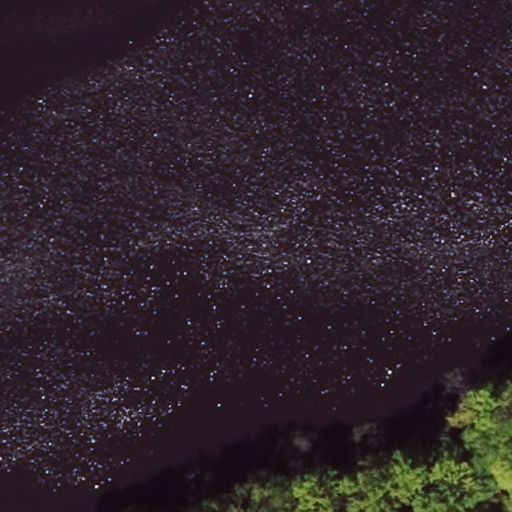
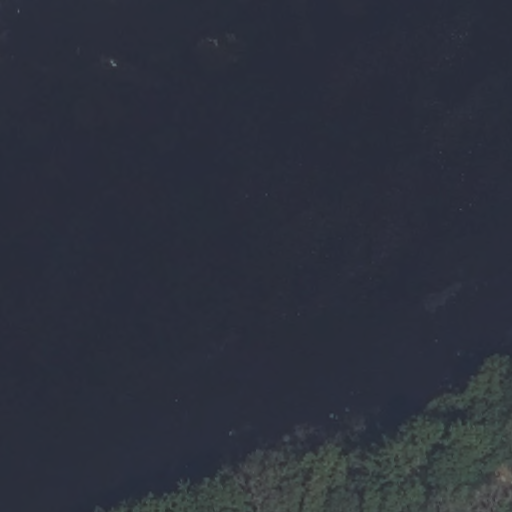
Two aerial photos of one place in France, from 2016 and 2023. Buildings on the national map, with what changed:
[]

